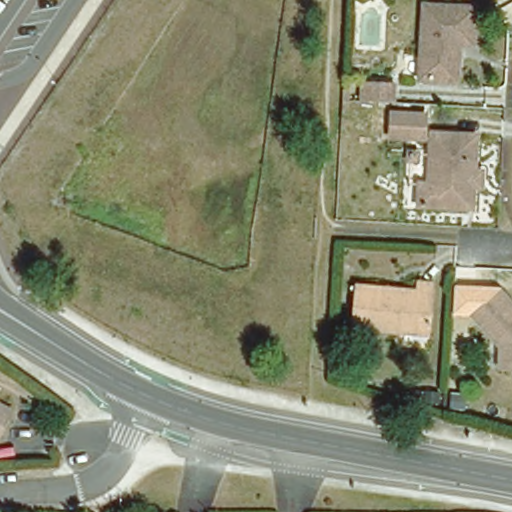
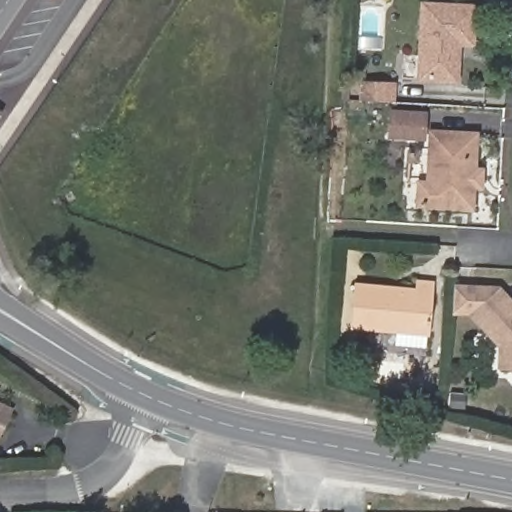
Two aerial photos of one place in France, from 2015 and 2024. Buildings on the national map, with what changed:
unchanged [(427,2),(479,5),(477,44),(464,42),(462,47),(461,80),(423,78),(427,2)]
unchanged [(367,101),(367,82),(397,82),(397,102),(367,102),(367,101)]
unchanged [(425,140),(393,139),(394,117),(426,118),(425,140)]
unchanged [(420,207),(420,185),(429,186),(431,134),(475,136),(474,172),(469,175),(469,184),(474,186),(473,209),(420,207)]
unchanged [(498,285),(512,300),(512,368),(510,366),(499,365),(500,342),(470,311),(498,285)]
unchanged [(397,339),(352,337),(354,292),(416,295),(416,290),(434,291),(434,296),(432,340),(397,339)]
unchanged [(0,440),(0,409),(12,414),(0,440)]

